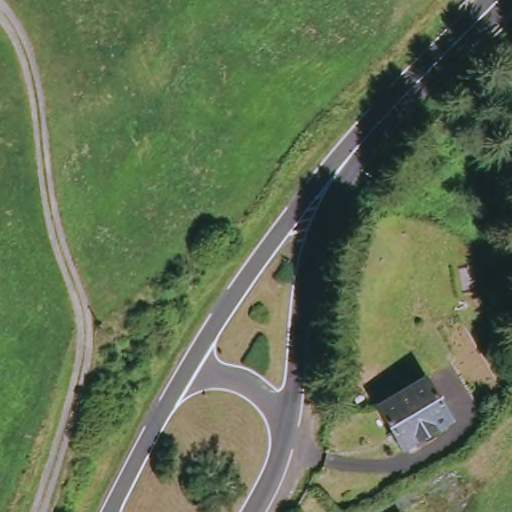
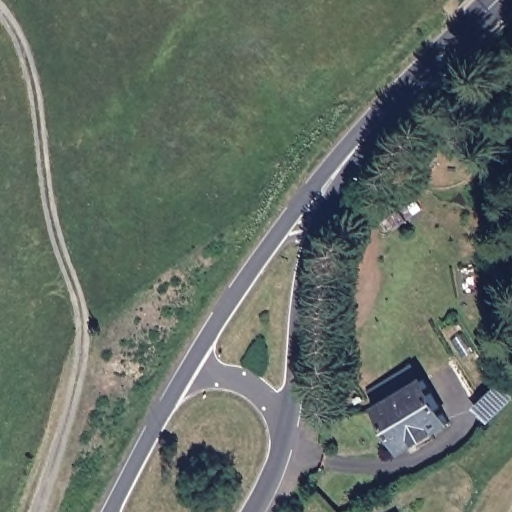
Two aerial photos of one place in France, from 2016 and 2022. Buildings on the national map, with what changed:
unchanged [(406,456),(381,415),(430,385),(453,428),(406,456)]
unchanged [(393,512),(378,512),(390,506),(393,512)]

